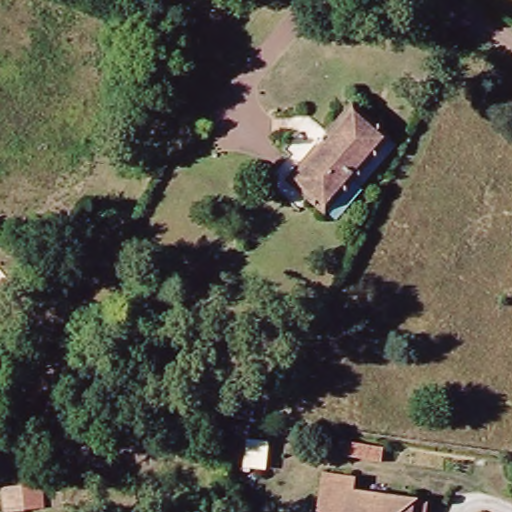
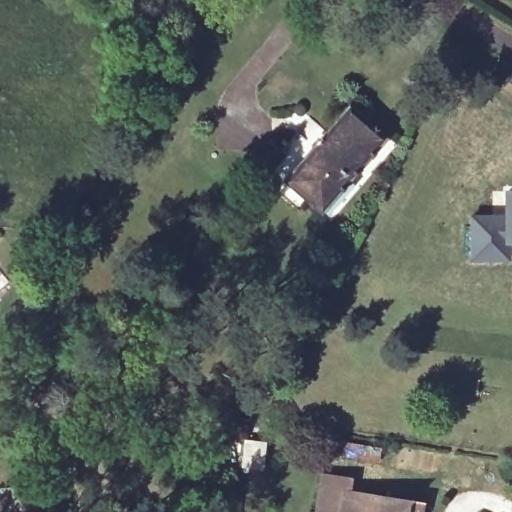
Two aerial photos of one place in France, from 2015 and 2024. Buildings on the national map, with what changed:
unchanged [(322,213),(284,180),(349,105),(387,138),(322,213)]
new [(507,217),(507,191),(512,191),(512,241),(508,241),(508,259),(472,259),(472,217),(507,217)]
new [(242,440),(263,443),(259,468),(239,464),(242,440)]
unchanged [(342,443),(381,449),(379,462),(339,455),(342,443)]
unchanged [(346,479),(344,492),(404,501),(419,503),(417,512),(311,512),(317,474),(346,479)]
unchanged [(30,494),(33,506),(10,512),(8,512),(6,500),(30,494)]

